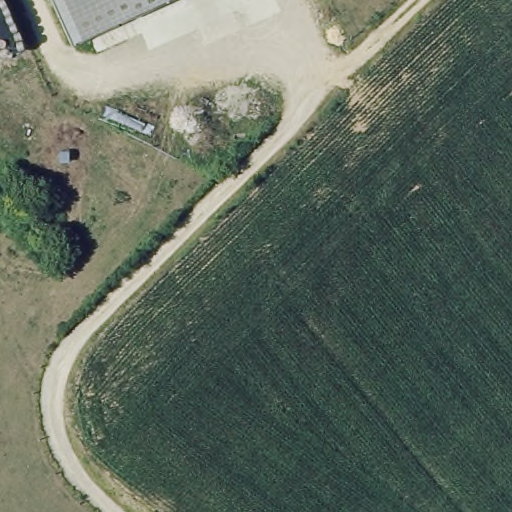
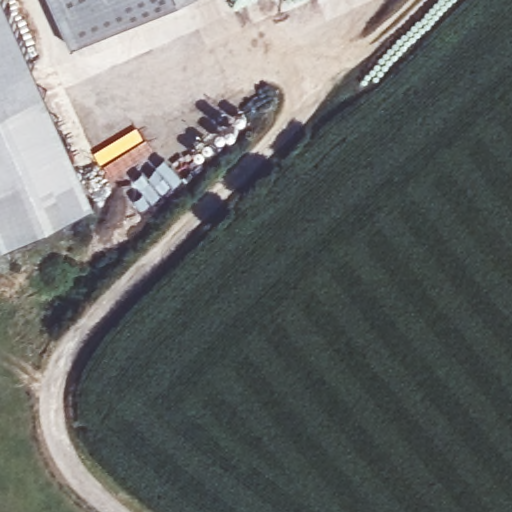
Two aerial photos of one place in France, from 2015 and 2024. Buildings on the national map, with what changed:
new [(0,0),(8,0),(98,194),(8,232),(0,214),(0,0)]
unchanged [(79,50),(55,0),(191,0),(79,50)]

